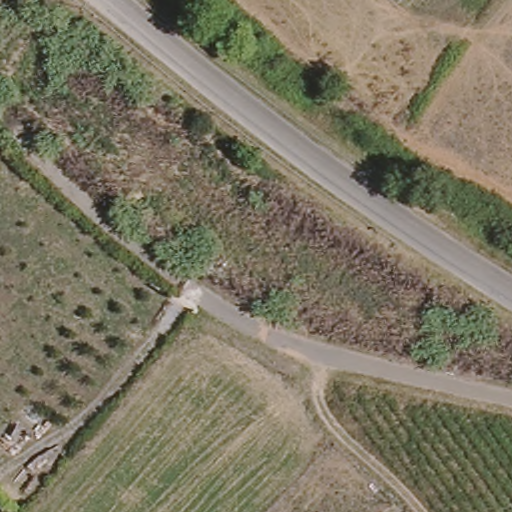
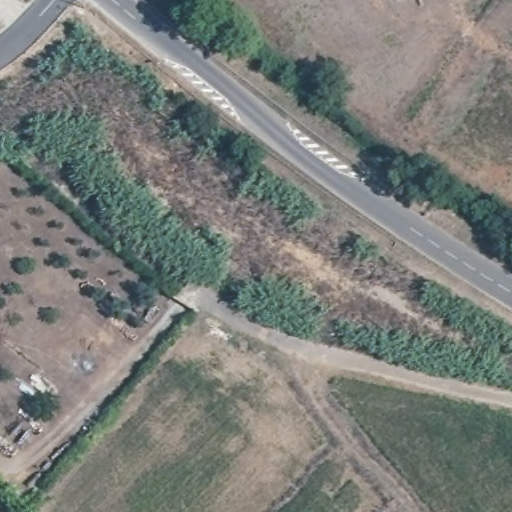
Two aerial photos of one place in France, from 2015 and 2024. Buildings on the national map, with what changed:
unchanged [(396,0),(398,0),(397,1),(396,0)]

